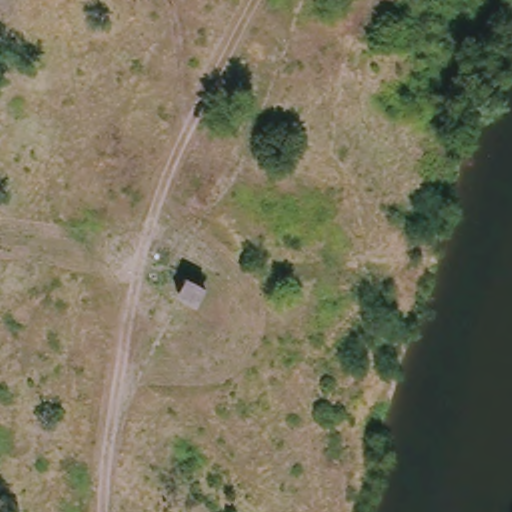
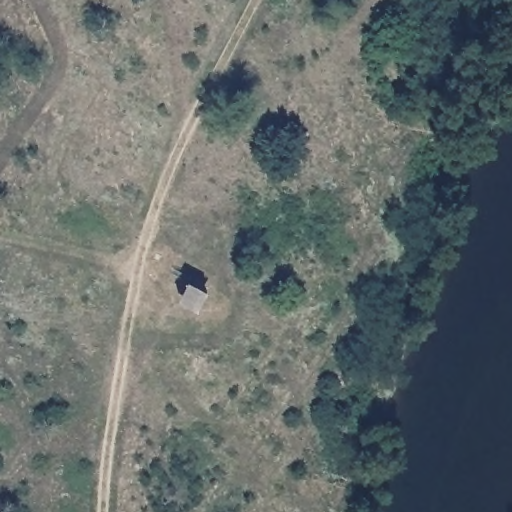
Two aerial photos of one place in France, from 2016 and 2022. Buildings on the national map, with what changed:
unchanged [(209,292),(201,311),(180,300),(189,282),(209,292)]

